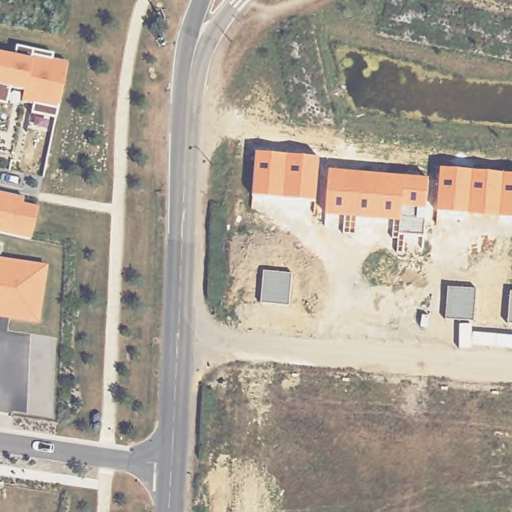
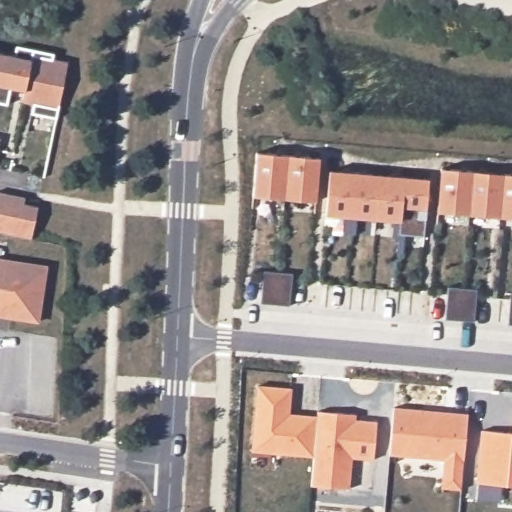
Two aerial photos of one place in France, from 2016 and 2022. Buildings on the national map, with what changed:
unchanged [(11,55),(13,46),(53,54),(52,61),(68,63),(57,119),(31,112),(31,106),(21,104),(23,91),(7,88),(4,104),(0,103),(0,52),(11,55)]
unchanged [(315,201),(253,197),(256,153),(319,159),(315,201)]
unchanged [(441,168),(512,174),(512,218),(436,211),(441,168)]
unchanged [(423,236),(397,235),(398,221),(325,216),(331,170),(428,180),(423,236)]
unchanged [(24,199),(23,204),(36,206),(29,238),(0,233),(0,192),(24,199)]
unchanged [(47,266),(39,325),(0,320),(0,258),(47,266)]
new [(291,305),(276,304),(261,302),(264,270),(279,271),(293,272),(291,305)]
new [(474,321),(459,320),(444,318),(447,285),(462,287),(476,288),(474,321)]
unchanged [(510,292),(512,293),(512,324),(507,324),(510,292)]
new [(256,385),(290,388),(288,414),(315,416),(312,457),(250,452),(256,385)]
new [(442,460),(387,455),(392,407),(422,410),(446,412),(467,414),(461,475),(460,490),(440,487),(441,472),(442,460)]
new [(312,457),(315,416),(316,410),(354,414),(353,420),(375,421),(372,460),(350,457),(347,489),(309,485),(312,457)]
new [(512,433),(512,486),(476,483),(480,430),(512,433)]

